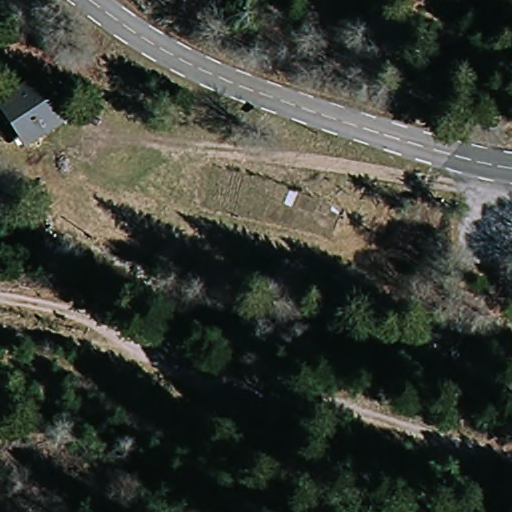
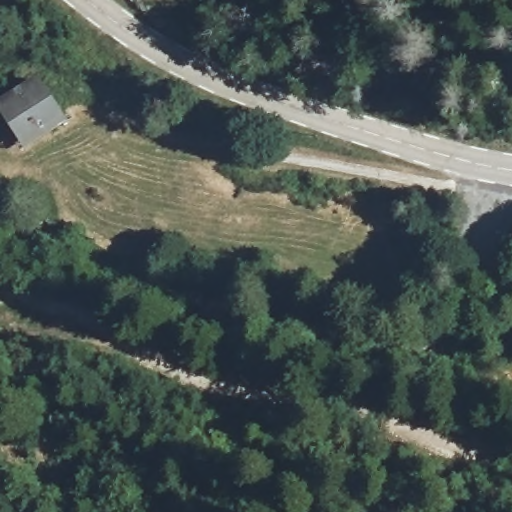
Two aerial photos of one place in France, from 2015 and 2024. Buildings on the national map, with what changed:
unchanged [(0,102),(40,78),(70,123),(27,151),(0,107),(0,102)]

